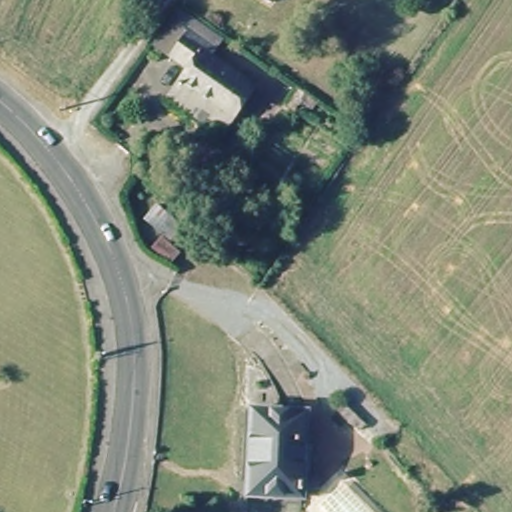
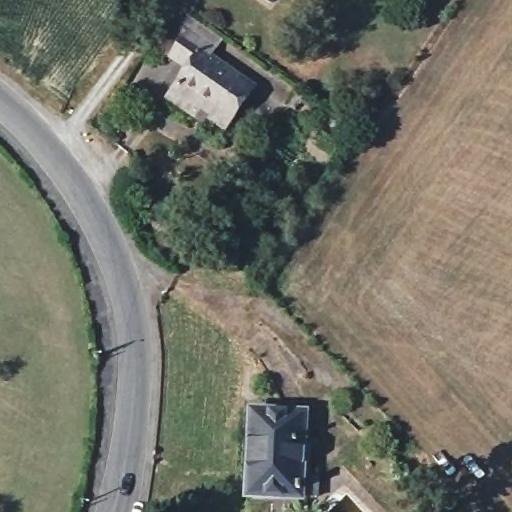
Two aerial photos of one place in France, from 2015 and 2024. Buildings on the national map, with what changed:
unchanged [(271,4),(264,0),(274,0),(271,4)]
unchanged [(295,3),(290,0),(297,0),(295,3)]
unchanged [(205,62),(252,94),(227,130),(192,106),(185,117),(167,105),(187,76),(171,65),(188,41),(209,55),(205,62)]
unchanged [(322,473),(322,493),(307,493),(307,498),(248,496),(251,410),(310,411),(307,473),(322,473)]

